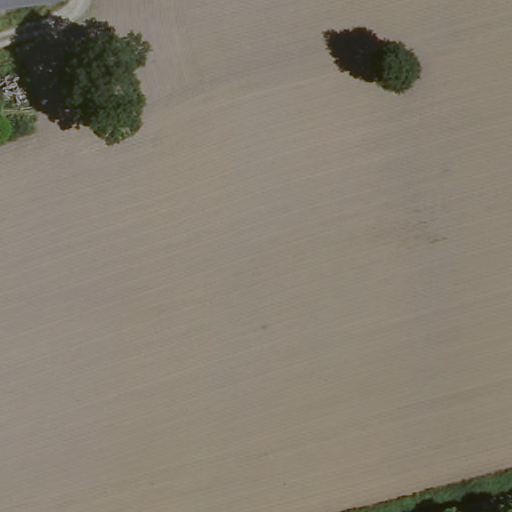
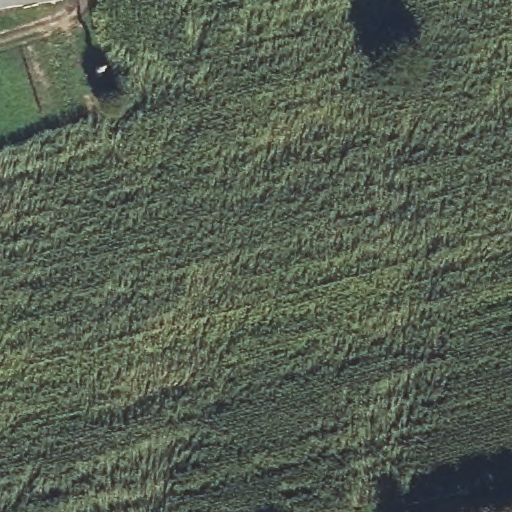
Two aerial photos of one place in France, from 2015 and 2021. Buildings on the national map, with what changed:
unchanged [(0,0),(39,0),(0,7),(0,0)]

